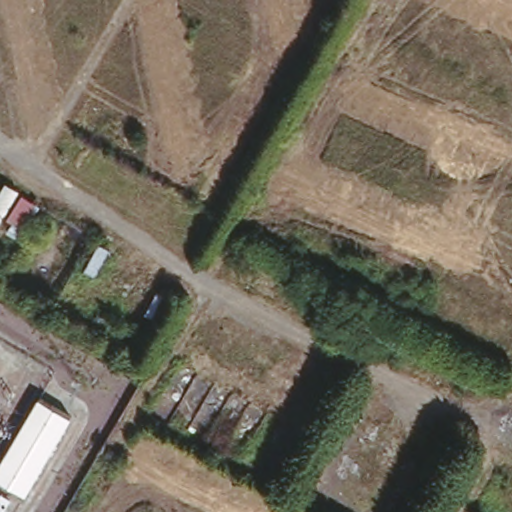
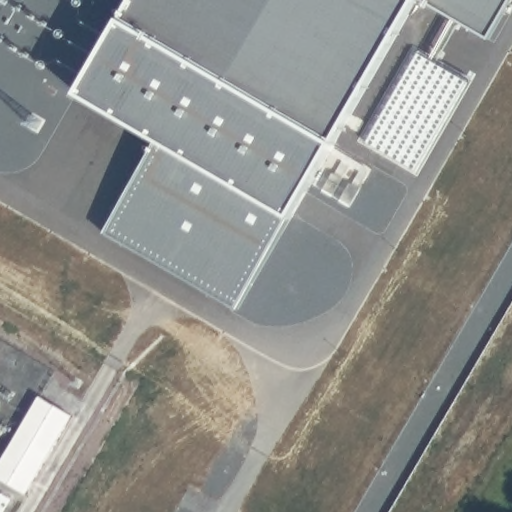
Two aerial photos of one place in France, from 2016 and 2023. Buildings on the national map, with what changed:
new [(253,310),(110,234),(172,139),(87,93),(143,0),(428,0),(300,218),(253,310)]
demolished [(21,191),(41,204),(36,214),(30,210),(23,224),(9,215),(21,191)]
demolished [(0,227),(0,222),(2,224),(0,227)]
demolished [(99,238),(114,246),(98,274),(84,266),(99,238)]
demolished [(139,270),(154,278),(141,300),(126,293),(139,270)]
demolished [(100,310),(135,328),(129,341),(93,323),(100,310)]
new [(27,495),(0,477),(0,467),(41,397),(74,416),(27,495)]
new [(186,512),(180,512),(182,510),(186,512)]

